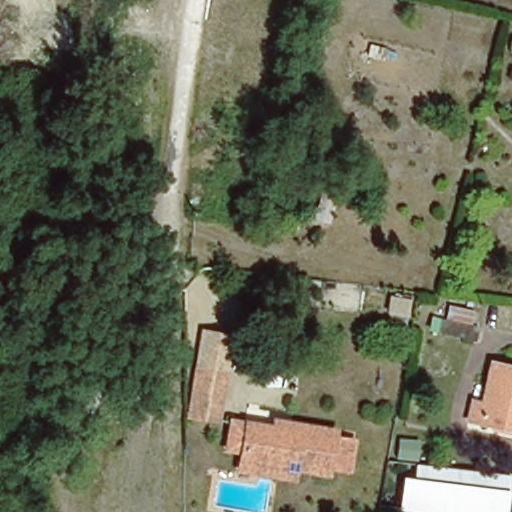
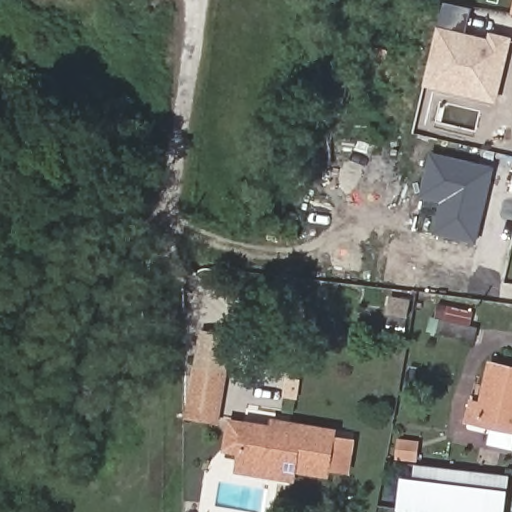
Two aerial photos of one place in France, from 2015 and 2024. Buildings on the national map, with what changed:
new [(439,22),(447,4),(472,10),(466,32),(509,42),(510,37),(512,38),(512,42),(497,104),(424,86),(439,22)]
unchanged [(512,37),(512,54),(508,53),(512,37)]
new [(427,233),(435,202),(417,199),(429,153),(494,168),(475,245),(427,233)]
unchanged [(335,199),(327,224),(313,219),(320,194),(335,199)]
unchanged [(473,341),(437,332),(440,319),(443,320),(446,306),(472,311),(469,326),(476,327),(473,341)]
unchanged [(512,424),(466,415),(471,395),(481,397),(490,357),(512,362),(512,424)]
unchanged [(225,372),(216,421),(187,416),(194,367),(225,372)]
unchanged [(270,427),(271,420),(332,429),(331,437),(352,440),(348,471),(327,467),(326,476),(294,470),(293,479),(234,469),(238,452),(223,450),(228,420),(270,427)]
unchanged [(408,512),(398,511),(401,477),(414,478),(417,465),(509,476),(510,491),(507,512),(408,512)]

